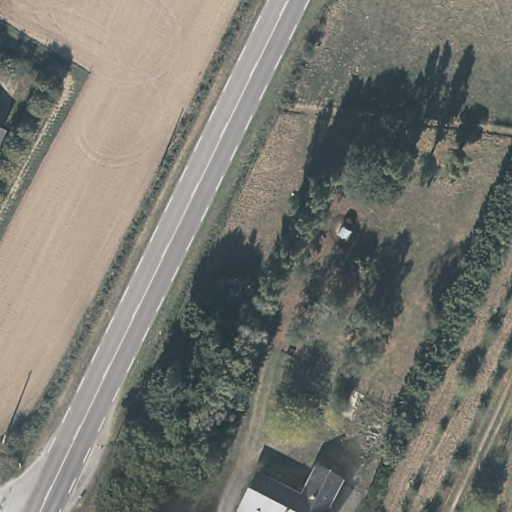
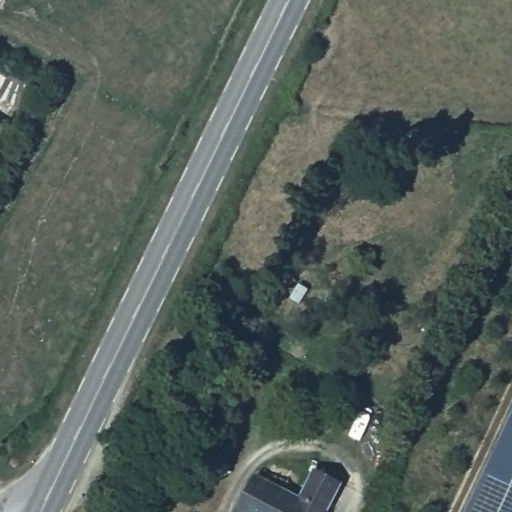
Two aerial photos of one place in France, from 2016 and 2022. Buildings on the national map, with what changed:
unchanged [(0,134),(0,122),(5,124),(0,134)]
new [(512,422),(512,512),(470,512),(512,422)]
unchanged [(344,485),(331,512),(242,512),(258,481),(301,502),(317,471),(344,485)]

